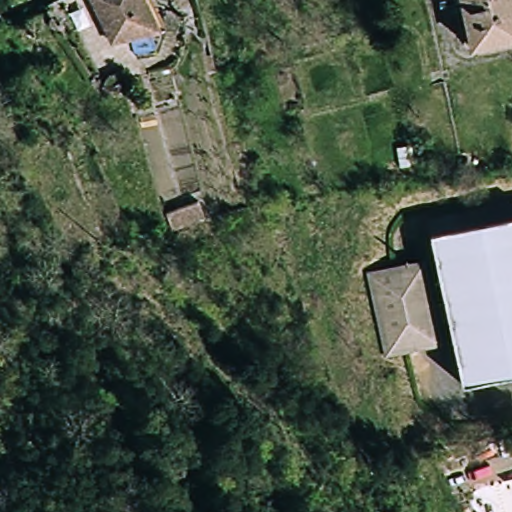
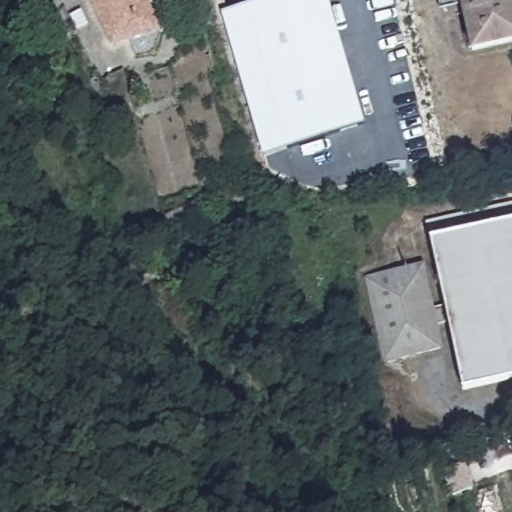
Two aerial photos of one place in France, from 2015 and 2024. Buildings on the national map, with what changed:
unchanged [(111,38),(101,13),(107,10),(103,0),(149,0),(157,20),(111,38)]
new [(263,155),(221,10),(257,0),(328,0),(365,126),(263,155)]
unchanged [(466,8),(452,12),(445,13),(442,0),(512,0),(512,49),(477,56),(466,8)]
unchanged [(207,217),(175,228),(166,211),(200,197),(207,217)]
unchanged [(512,214),(512,377),(509,377),(475,221),(512,214)]
unchanged [(431,229),(475,221),(509,377),(461,387),(448,320),(434,324),(440,352),(381,363),(362,264),(420,253),(429,297),(443,295),(431,229)]

